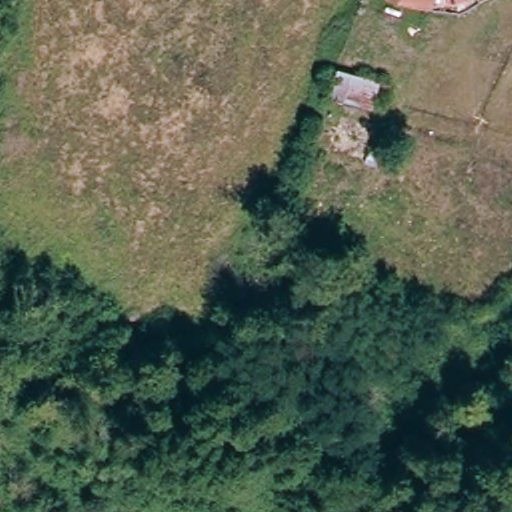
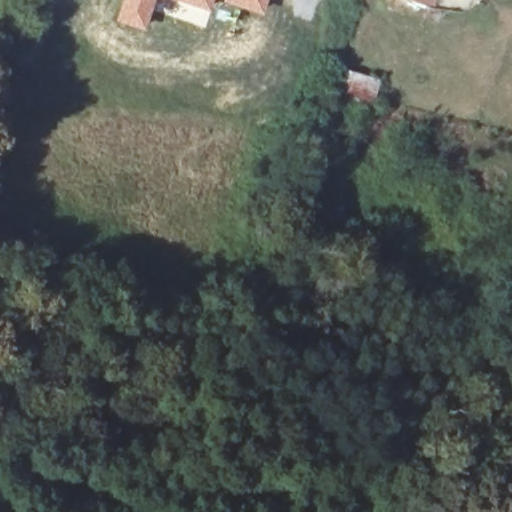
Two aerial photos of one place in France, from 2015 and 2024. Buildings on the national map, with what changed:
new [(154,0),(143,30),(113,20),(120,0),(154,0)]
new [(172,0),(214,0),(209,13),(172,0)]
new [(221,0),(266,0),(261,15),(221,0)]
unchanged [(392,0),(430,0),(428,9),(392,0)]
unchanged [(379,74),(371,103),(329,89),(337,61),(379,74)]

